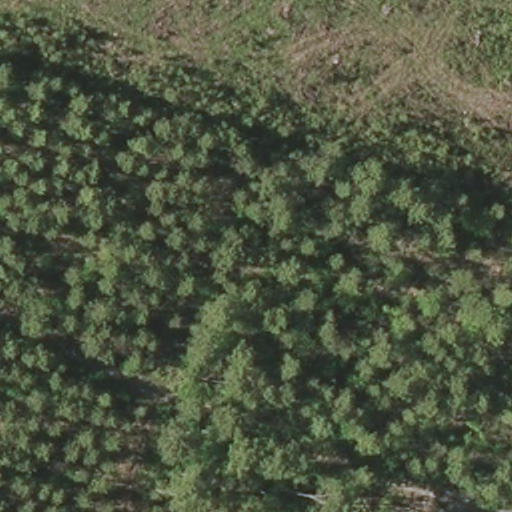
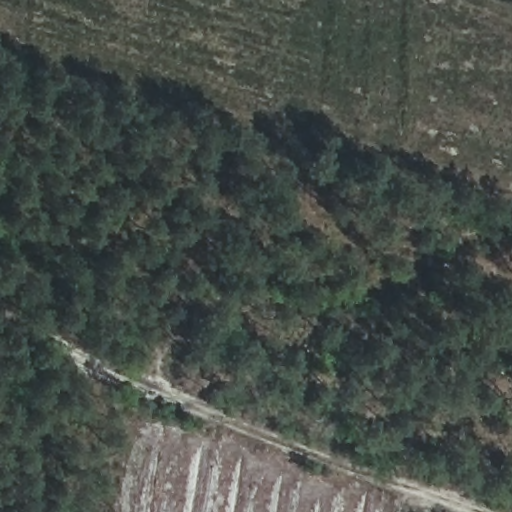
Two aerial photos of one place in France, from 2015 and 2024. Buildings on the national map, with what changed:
[]

